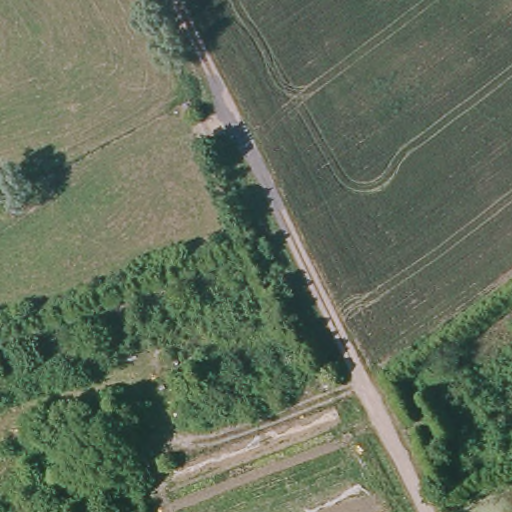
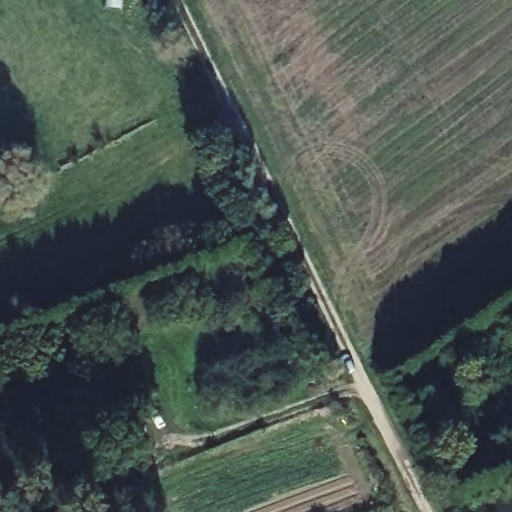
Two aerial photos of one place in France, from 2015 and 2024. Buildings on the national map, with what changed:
unchanged [(12,436),(38,432),(53,489),(28,493),(12,436)]
unchanged [(106,450),(135,437),(150,468),(120,479),(106,450)]

